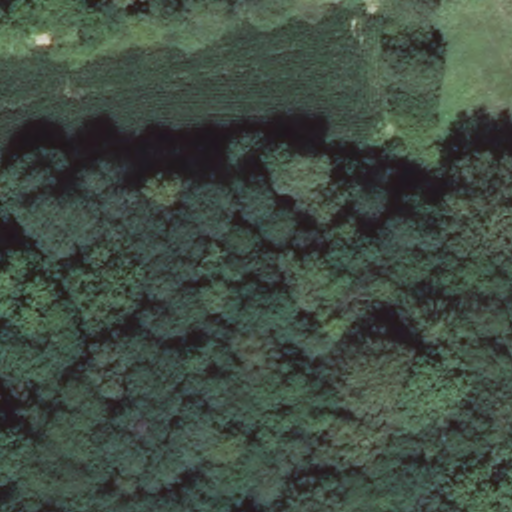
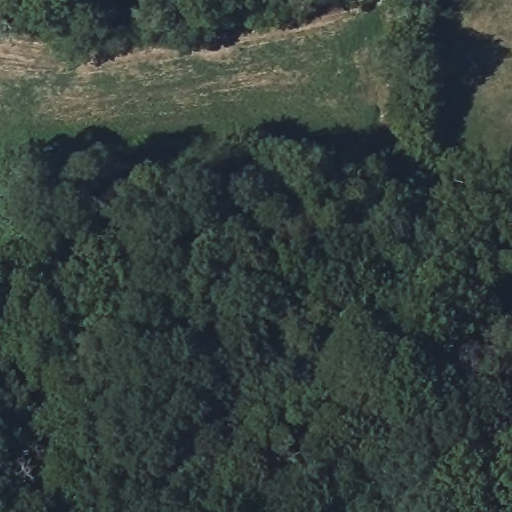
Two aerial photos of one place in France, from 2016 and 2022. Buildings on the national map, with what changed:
[]

